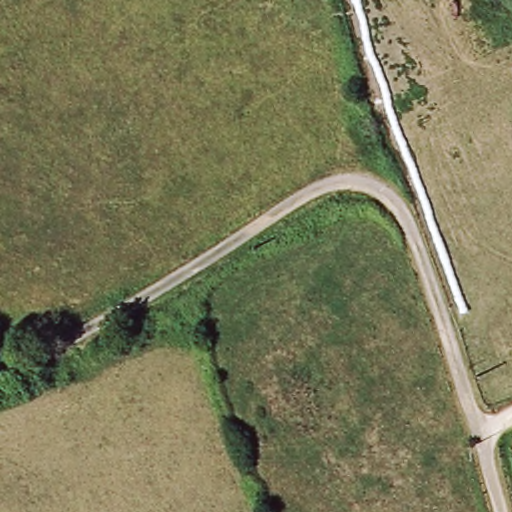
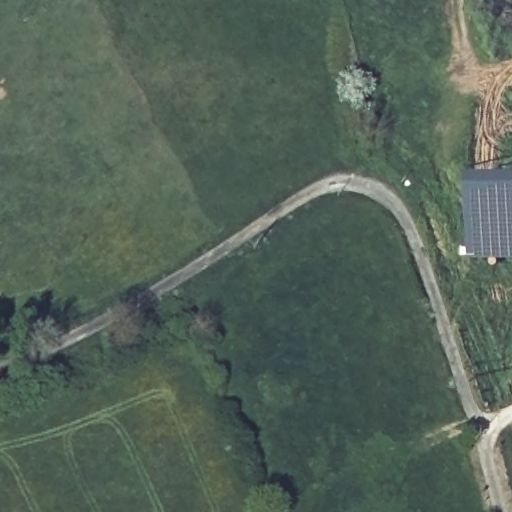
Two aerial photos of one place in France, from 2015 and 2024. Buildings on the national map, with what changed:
new [(512,165),(512,252),(471,252),(470,165),(512,165)]

